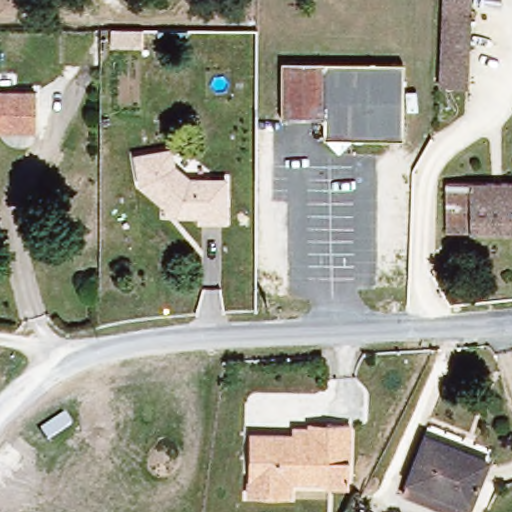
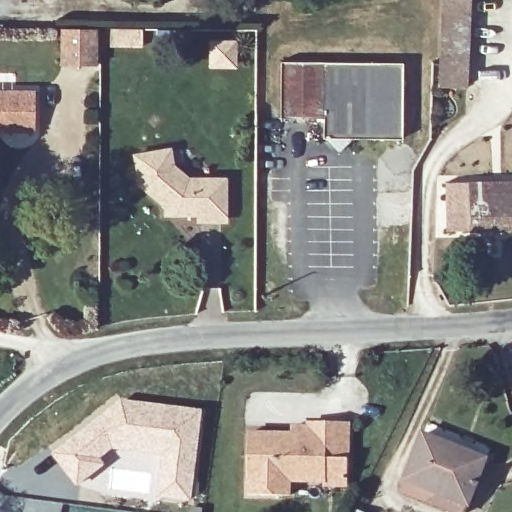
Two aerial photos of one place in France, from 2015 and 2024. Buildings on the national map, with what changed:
unchanged [(445,82),(444,82),(441,32),(438,0),(466,0),(472,80),(445,82)]
new [(97,28),(99,64),(63,65),(62,29),(97,28)]
unchanged [(325,144),(325,124),(280,124),(280,68),(400,68),(401,143),(351,143),(337,156),(325,144)]
unchanged [(34,91),(36,131),(7,133),(0,133),(0,93),(34,91)]
unchanged [(171,215),(137,188),(132,159),(167,153),(170,169),(190,187),(226,183),(231,224),(204,227),(203,221),(181,224),(172,224),(171,215)]
unchanged [(512,232),(442,234),(440,183),(512,180),(512,232)]
new [(121,397),(131,400),(204,410),(192,504),(156,498),(161,458),(131,453),(122,453),(102,459),(107,466),(77,488),(51,454),(121,397)]
unchanged [(346,482),(326,482),(326,478),(293,477),(293,497),(245,496),(247,434),(292,434),(292,425),(307,426),(308,416),(326,417),(348,418),(346,482)]
unchanged [(485,463),(463,512),(402,486),(423,437),(485,463)]

